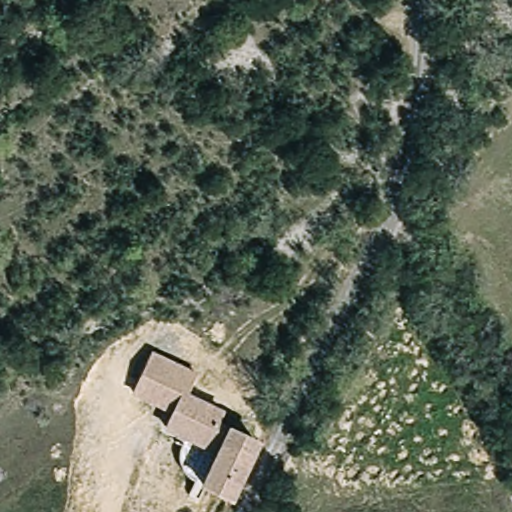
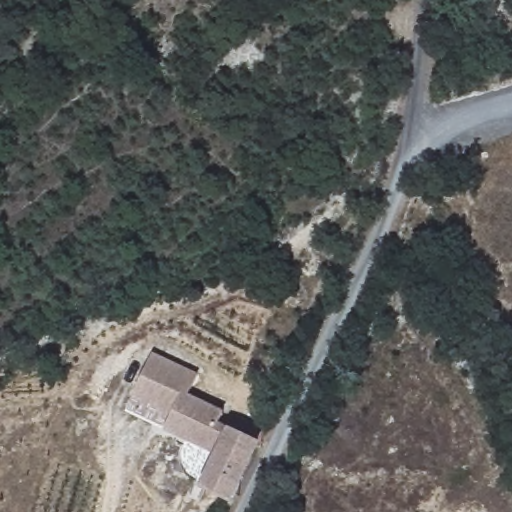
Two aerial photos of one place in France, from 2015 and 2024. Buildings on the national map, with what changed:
unchanged [(260,443),(232,504),(200,488),(214,458),(163,431),(171,416),(132,397),(152,354),(197,374),(188,394),(224,411),(218,423),(228,428),(260,443)]

